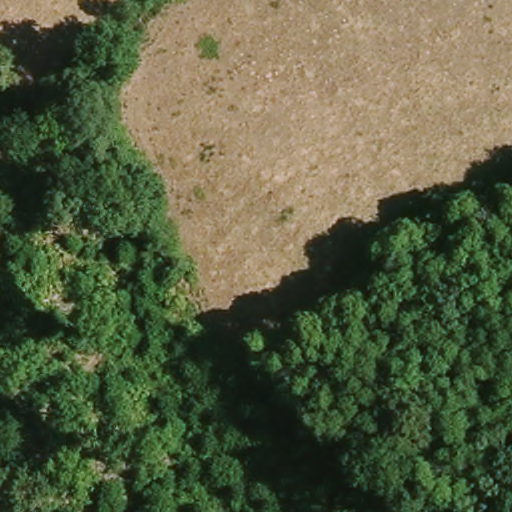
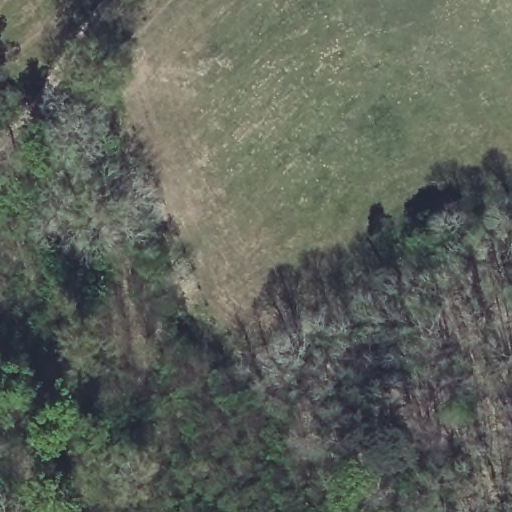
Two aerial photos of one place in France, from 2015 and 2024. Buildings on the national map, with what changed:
[]

